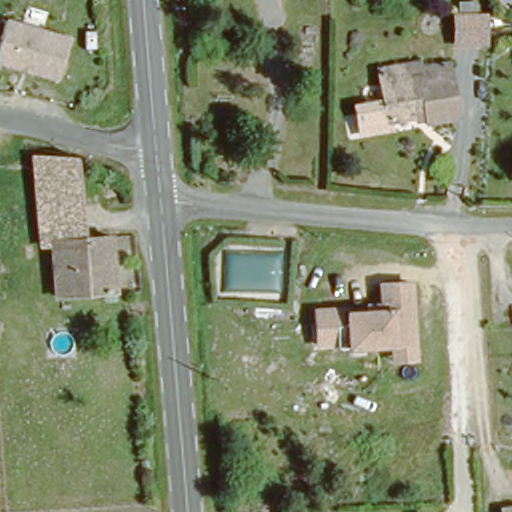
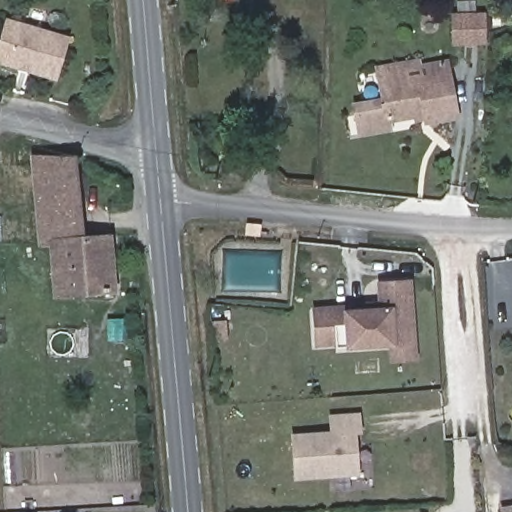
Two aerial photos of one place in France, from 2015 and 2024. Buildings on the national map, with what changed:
unchanged [(8,18),(69,39),(55,81),(0,65),(0,43),(8,18)]
unchanged [(450,46),(452,18),(470,18),(482,19),(483,33),(482,48),(469,47),(450,46)]
unchanged [(455,114),(424,119),(423,111),(387,116),(381,79),(379,65),(400,61),(402,75),(448,68),(455,114)]
unchanged [(31,148),(70,158),(77,235),(105,237),(110,297),(73,297),(49,299),(48,282),(45,238),(34,238),(31,148)]
unchanged [(412,344),(347,347),(347,342),(318,343),(317,308),(349,307),(349,313),(382,311),(381,284),(410,282),(412,344)]
new [(295,482),(292,434),(330,432),(329,415),(361,413),(363,434),(358,435),(361,478),(295,482)]
unchanged [(512,511),(512,512),(509,512),(512,511)]

